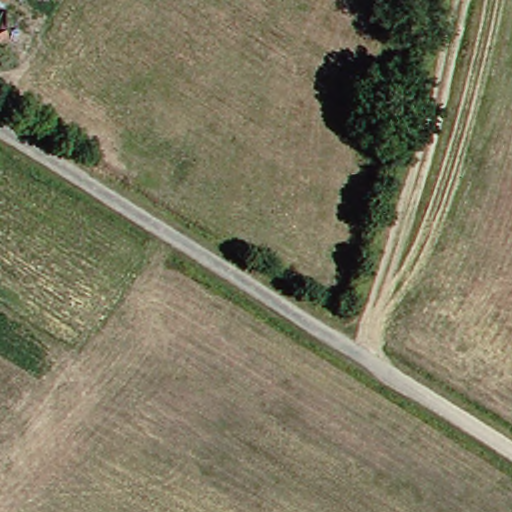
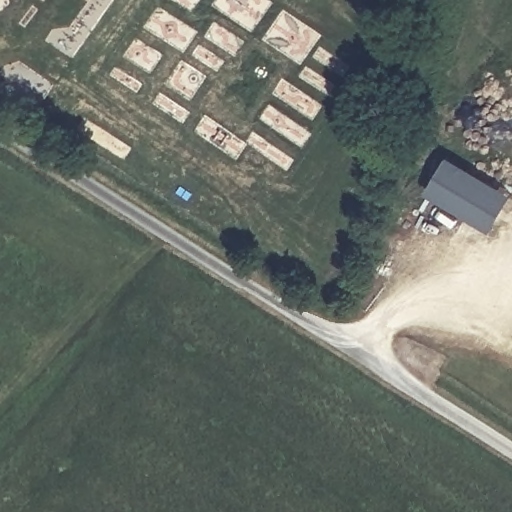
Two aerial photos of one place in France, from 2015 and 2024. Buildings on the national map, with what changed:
new [(512,193),(512,197),(491,232),(425,193),(449,156),(512,193)]

